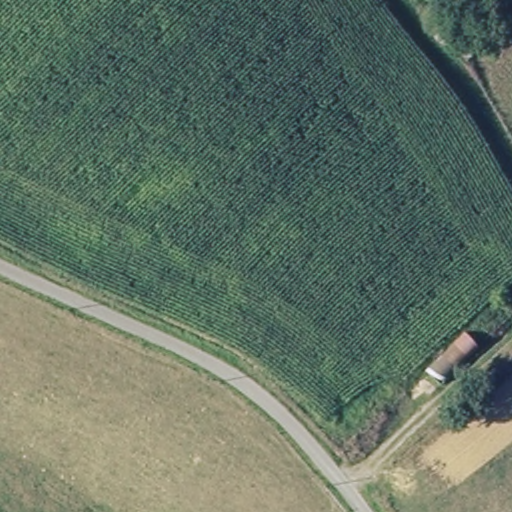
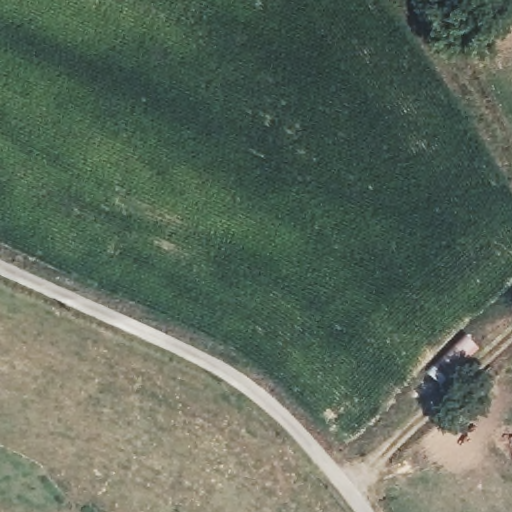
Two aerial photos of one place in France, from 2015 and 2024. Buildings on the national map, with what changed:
unchanged [(481,347),(442,383),(428,373),(468,334),(481,347)]

